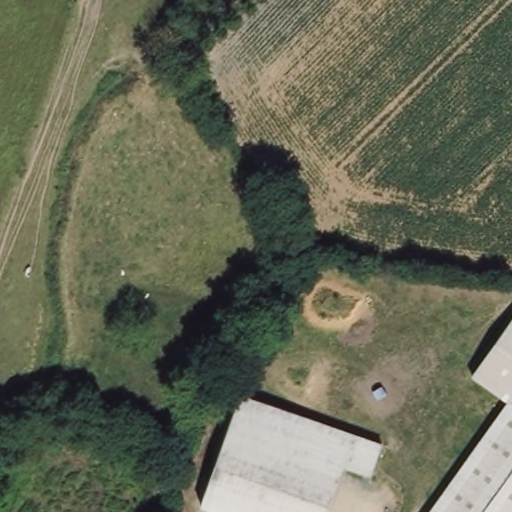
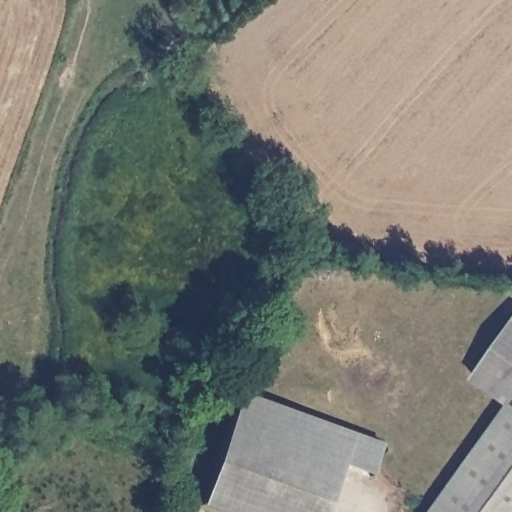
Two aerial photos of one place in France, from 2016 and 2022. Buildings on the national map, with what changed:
unchanged [(477,377),(512,331),(512,402),(477,377)]
unchanged [(238,394),(381,445),(371,481),(343,472),(329,512),(203,512),(199,511),(238,394)]
unchanged [(512,406),(512,512),(436,512),(512,406)]

